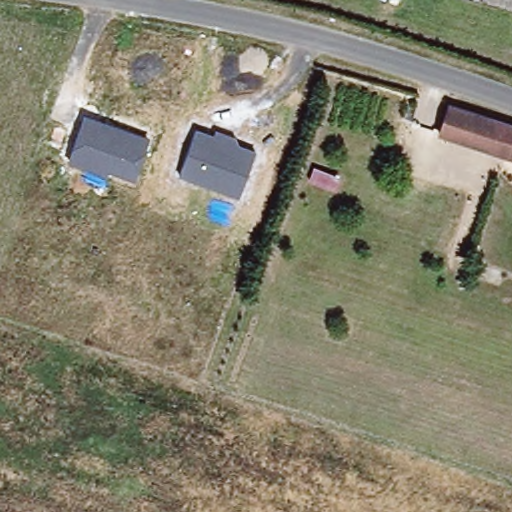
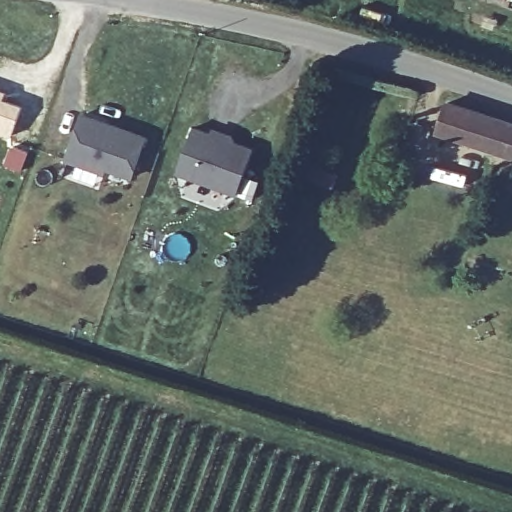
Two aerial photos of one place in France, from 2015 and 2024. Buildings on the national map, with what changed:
new [(7,91),(5,98),(24,105),(14,138),(0,133),(0,89),(7,91)]
unchanged [(512,161),(438,135),(448,104),(512,127),(512,161)]
unchanged [(149,133),(133,177),(107,169),(105,175),(67,160),(85,110),(149,133)]
unchanged [(214,131),(215,125),(235,132),(235,139),(255,146),(239,194),(178,172),(195,126),(214,131)]

